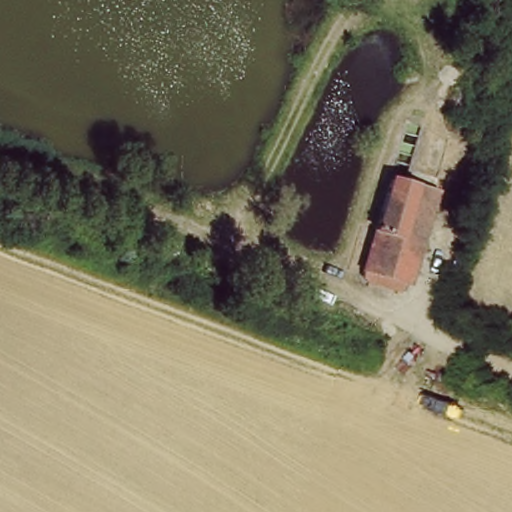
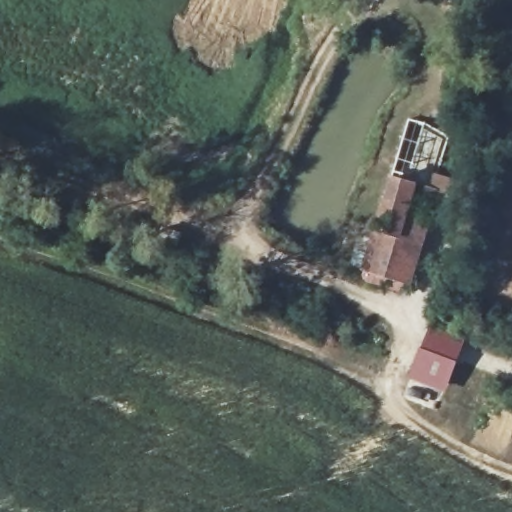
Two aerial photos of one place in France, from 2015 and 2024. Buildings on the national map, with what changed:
demolished [(401,165),(415,117),(428,120),(413,169),(401,165)]
unchanged [(413,202),(411,211),(392,271),(370,264),(397,173),(441,187),(435,208),(413,202)]
unchanged [(407,286),(371,275),(368,269),(370,264),(392,271),(411,211),(413,202),(435,208),(413,283),(407,286)]
new [(430,324),(466,338),(443,393),(406,377),(430,324)]

